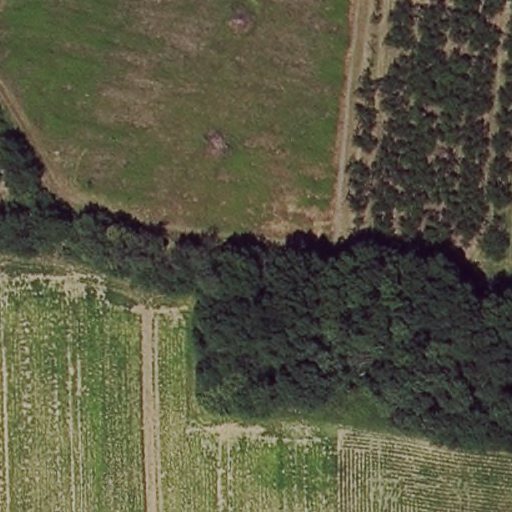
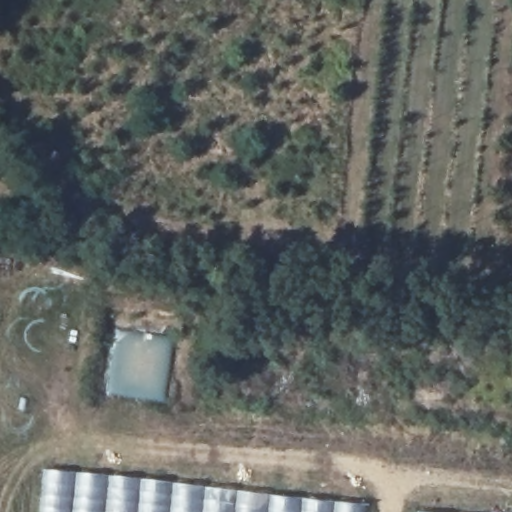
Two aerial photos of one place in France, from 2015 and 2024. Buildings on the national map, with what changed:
new [(43,469),(389,512),(39,512),(43,469)]

